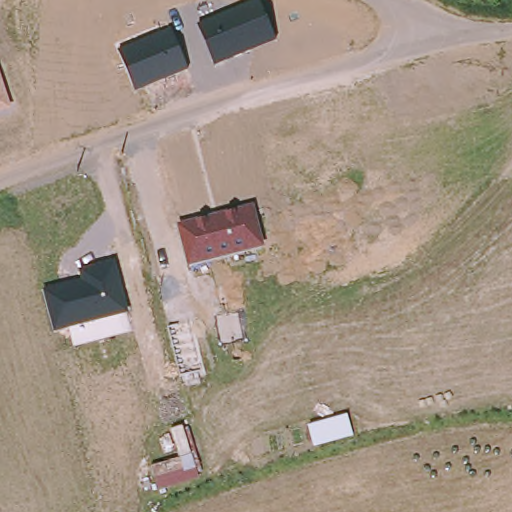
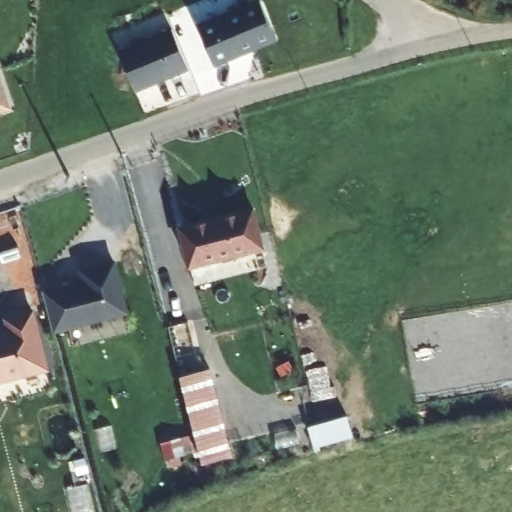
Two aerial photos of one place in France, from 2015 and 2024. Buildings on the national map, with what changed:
unchanged [(260,0),(276,42),(215,67),(198,26),(258,0),(260,0)]
unchanged [(189,69),(135,91),(119,51),(173,29),(189,69)]
unchanged [(0,113),(0,73),(12,108),(0,113)]
unchanged [(253,207),(265,250),(188,269),(178,226),(253,207)]
unchanged [(79,271),(114,262),(129,313),(54,333),(44,290),(81,281),(79,271)]
new [(3,322),(13,319),(30,315),(45,371),(0,383),(0,333),(15,329),(6,331),(3,322)]
new [(210,369),(232,455),(203,463),(181,376),(210,369)]
unchanged [(348,416),(353,436),(313,448),(308,426),(348,416)]
unchanged [(171,431),(183,427),(193,457),(200,480),(157,493),(151,468),(180,460),(171,431)]

